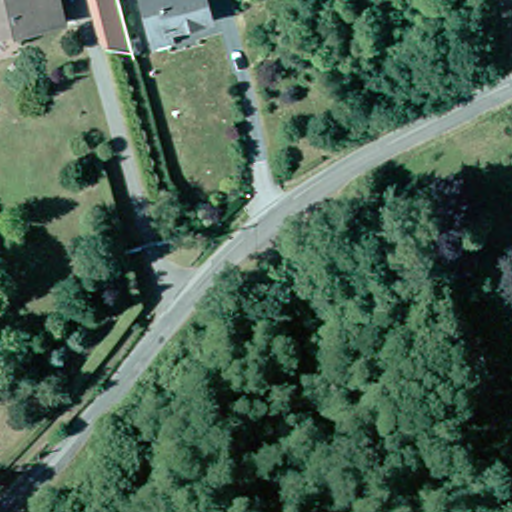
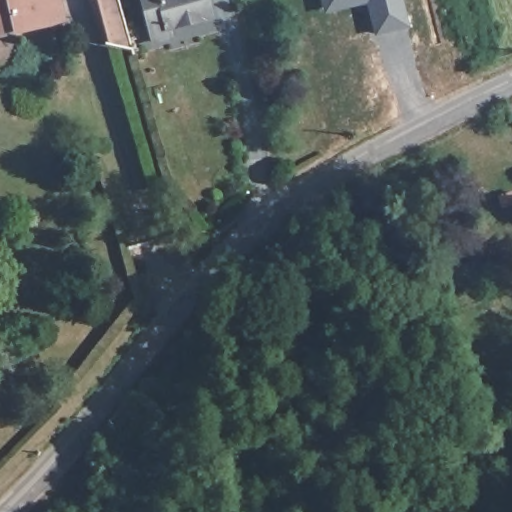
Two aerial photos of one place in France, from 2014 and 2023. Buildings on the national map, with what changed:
unchanged [(73,22),(25,33),(23,27),(0,33),(0,0),(69,0),(73,22)]
unchanged [(132,46),(101,40),(90,0),(119,0),(132,46)]
unchanged [(147,29),(140,0),(148,0),(150,5),(152,15),(155,27),(147,29)]
unchanged [(160,49),(157,36),(148,0),(211,0),(216,19),(217,24),(200,29),(174,37),(177,45),(160,49)]
new [(410,27),(378,35),(372,2),(328,11),(326,0),(404,0),(410,27)]

